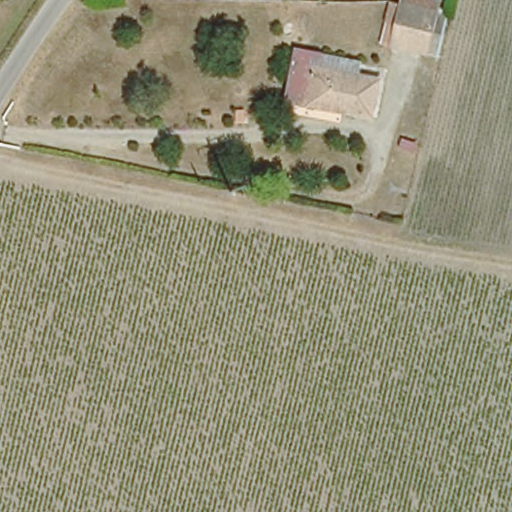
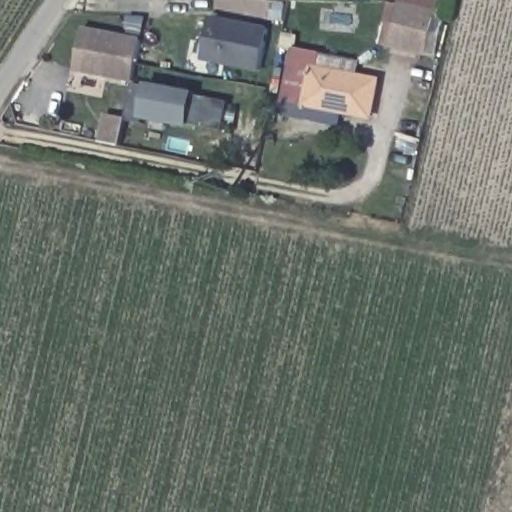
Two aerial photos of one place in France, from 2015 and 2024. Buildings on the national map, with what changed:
unchanged [(397,42),(407,0),(443,12),(434,52),(397,42)]
new [(212,16),(268,27),(260,72),(202,60),(212,16)]
new [(143,38),(134,83),(75,72),(84,27),(143,38)]
new [(293,47),(361,62),(357,77),(315,66),(306,104),(284,99),(293,47)]
unchanged [(315,66),(357,77),(378,82),(370,118),(306,104),(315,66)]
new [(196,94),(229,102),(224,130),(190,124),(190,126),(144,118),(144,122),(129,119),(136,83),(196,94)]

